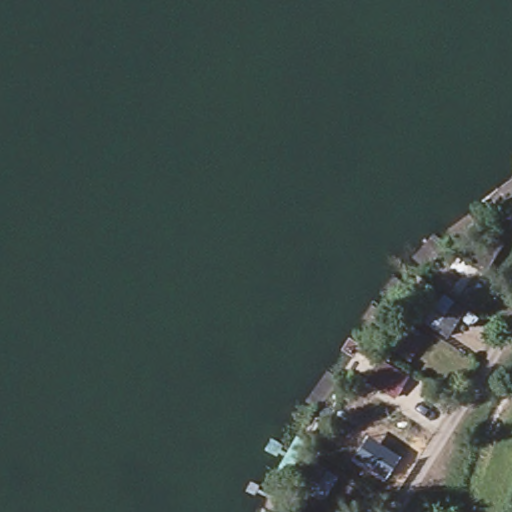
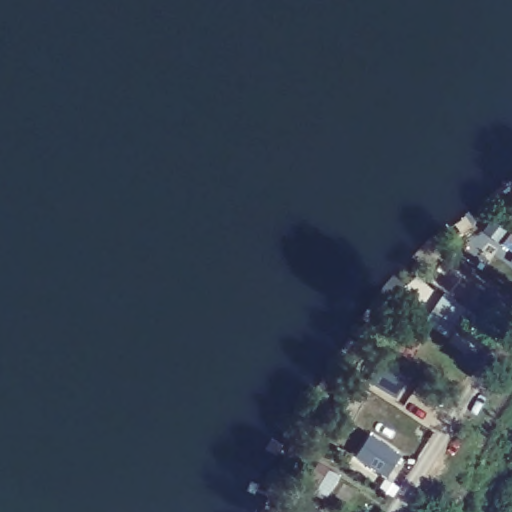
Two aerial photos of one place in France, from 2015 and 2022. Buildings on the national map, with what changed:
unchanged [(491,274),(475,299),(487,305),(480,318),(467,310),(447,338),(423,322),(442,292),(462,306),(465,303),(448,290),(457,275),(447,266),(454,257),(491,274)]
unchanged [(392,406),(375,435),(342,416),(357,391),(392,406)]
unchanged [(348,477),(331,504),(301,493),(315,464),(348,477)]

